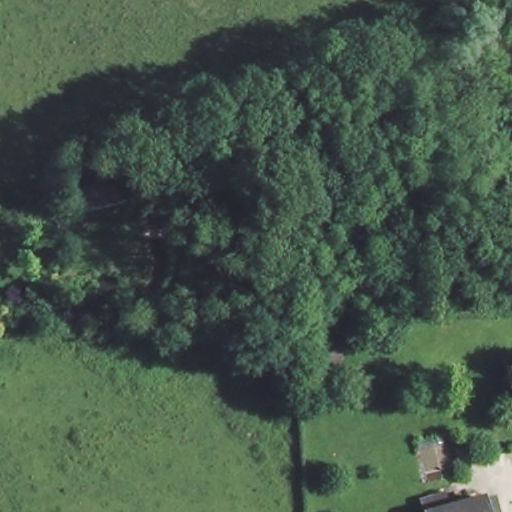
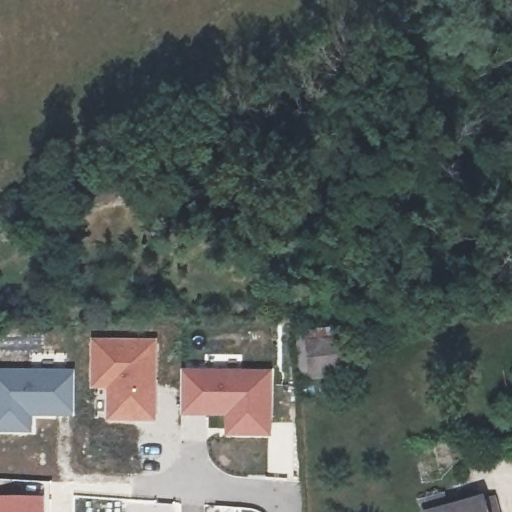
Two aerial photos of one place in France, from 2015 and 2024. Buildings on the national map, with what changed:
unchanged [(333,371),(307,371),(309,336),(335,337),(333,371)]
new [(106,422),(106,389),(90,388),(92,339),(157,339),(155,421),(106,422)]
new [(0,370),(73,371),(73,416),(32,416),(32,432),(0,432),(0,370)]
new [(225,436),(225,416),(181,415),(181,370),(271,371),(271,436),(225,436)]
unchanged [(455,509),(482,502),(483,510),(492,509),(493,512),(424,512),(420,499),(447,490),(455,509)]
new [(0,497),(42,497),(42,512),(0,512),(0,497)]

